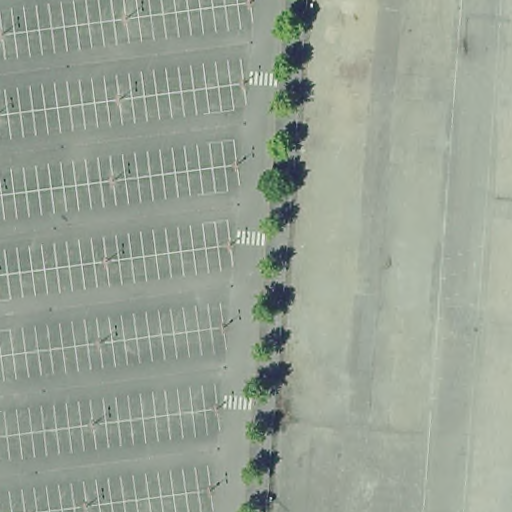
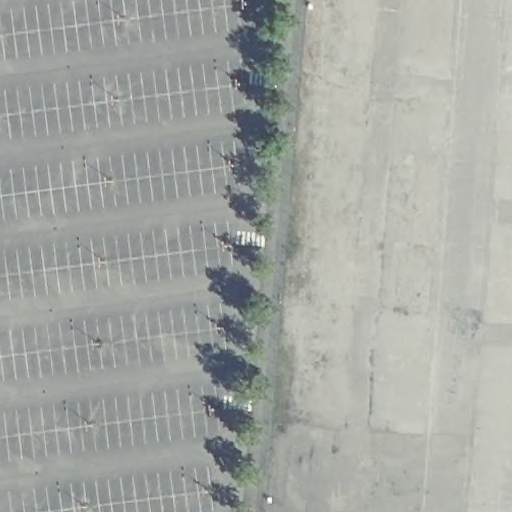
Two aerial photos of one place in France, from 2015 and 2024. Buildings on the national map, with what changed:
[]

